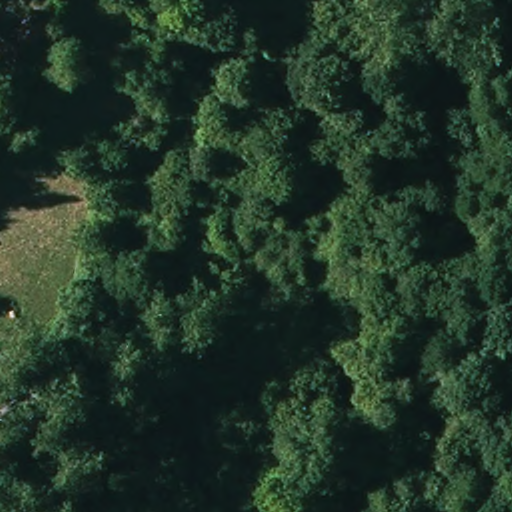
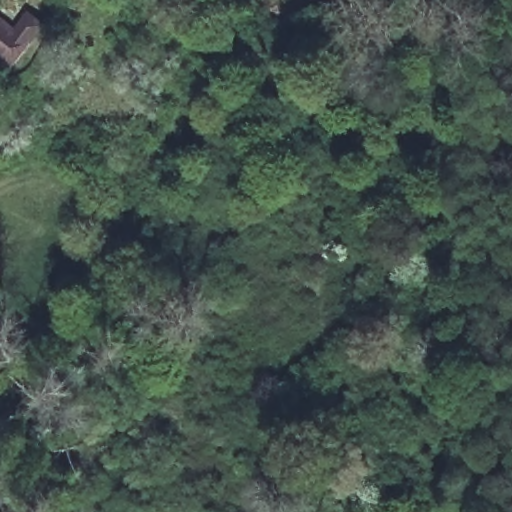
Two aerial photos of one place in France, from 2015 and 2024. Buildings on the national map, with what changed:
unchanged [(26,6),(44,20),(13,61),(0,51),(0,16),(12,25),(26,6)]

